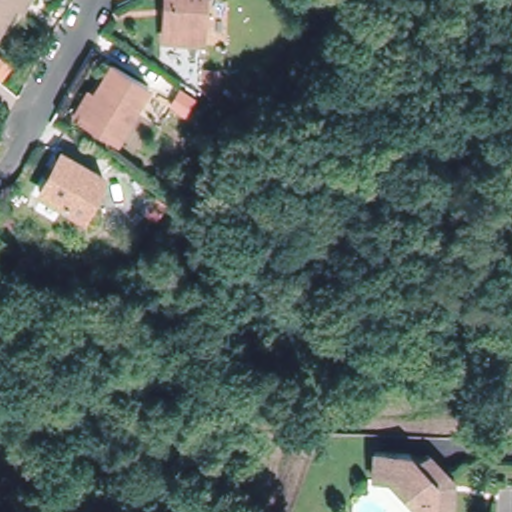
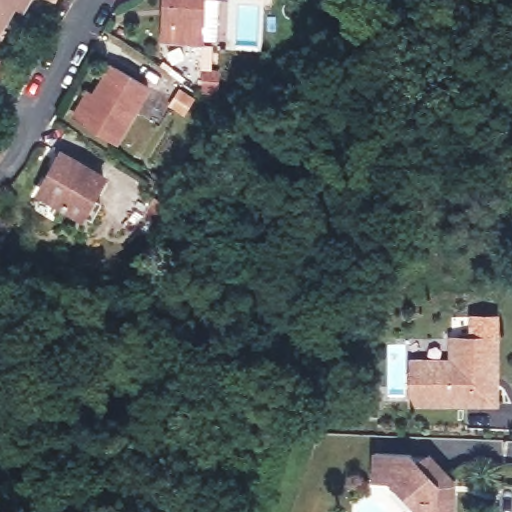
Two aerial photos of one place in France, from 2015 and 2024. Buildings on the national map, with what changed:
unchanged [(12,9),(5,5),(0,12),(0,0),(18,0),(12,9)]
unchanged [(166,38),(166,22),(167,0),(203,0),(202,24),(202,40),(166,38)]
unchanged [(89,93),(95,95),(113,65),(149,86),(118,140),(81,118),(76,115),(89,93)]
unchanged [(218,101),(201,90),(201,71),(218,71),(218,101)]
unchanged [(189,105),(171,93),(180,79),(198,91),(189,105)]
unchanged [(104,178),(83,215),(41,191),(61,154),(104,178)]
new [(500,335),(499,407),(409,406),(409,358),(448,359),(448,334),(500,335)]
new [(363,383),(377,383),(376,398),(375,413),(361,412),(362,397),(363,383)]
unchanged [(454,492),(452,512),(419,512),(420,502),(401,481),(374,480),(375,453),(411,455),(429,456),(448,477),(454,484),(454,492)]

